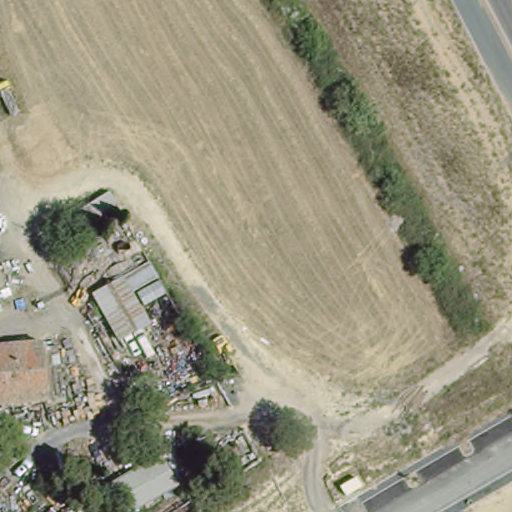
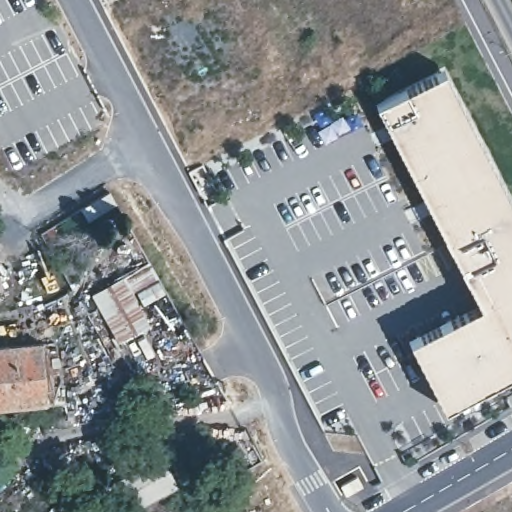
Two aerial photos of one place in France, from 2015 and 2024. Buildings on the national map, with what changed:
new [(512,216),(512,372),(450,403),(417,337),(488,300),(385,101),(438,73),(512,216)]
unchanged [(125,279),(148,267),(162,294),(144,309),(156,331),(125,350),(94,296),(125,279)]
unchanged [(0,290),(0,275),(4,289),(0,290)]
unchanged [(38,341),(50,339),(53,343),(62,396),(47,397),(0,401),(0,345),(38,341)]
unchanged [(177,483),(135,512),(115,512),(103,492),(162,457),(177,483)]

